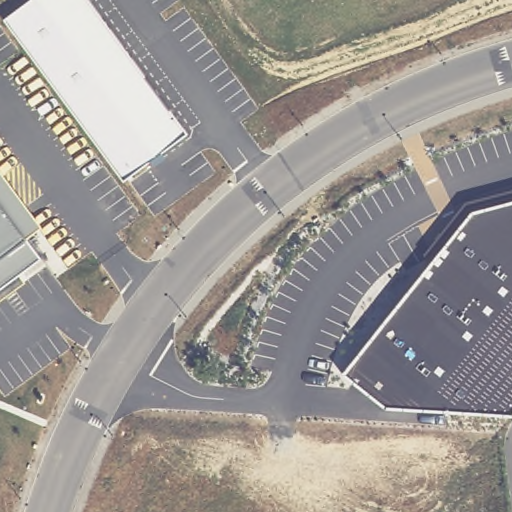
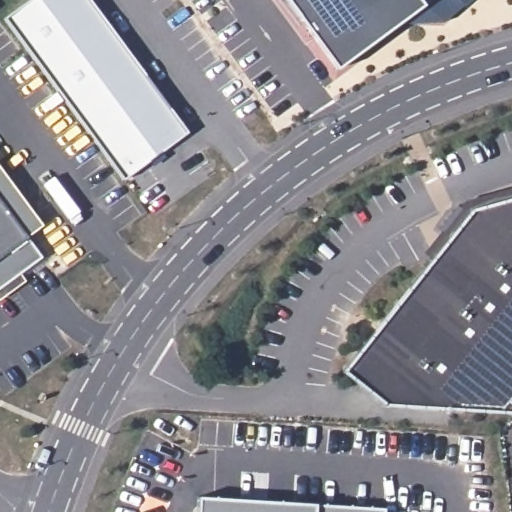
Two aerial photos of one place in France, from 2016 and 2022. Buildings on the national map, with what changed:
unchanged [(188,133),(125,181),(4,20),(31,0),(90,0),(188,133)]
new [(440,22),(397,24),(335,70),(285,0),(420,0),(423,5),(430,0),(467,0),(440,22)]
unchanged [(41,226),(25,239),(41,259),(20,275),(25,282),(0,300),(0,169),(41,226)]
unchanged [(342,371),(431,261),(423,255),(461,203),(512,189),(512,414),(387,406),(342,371)]
new [(383,506),(383,512),(195,512),(196,495),(383,506)]

